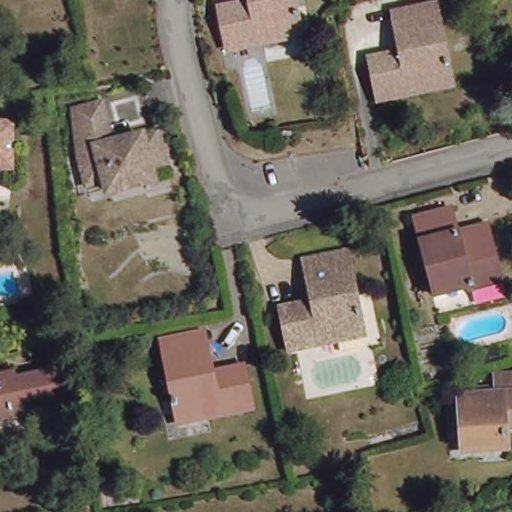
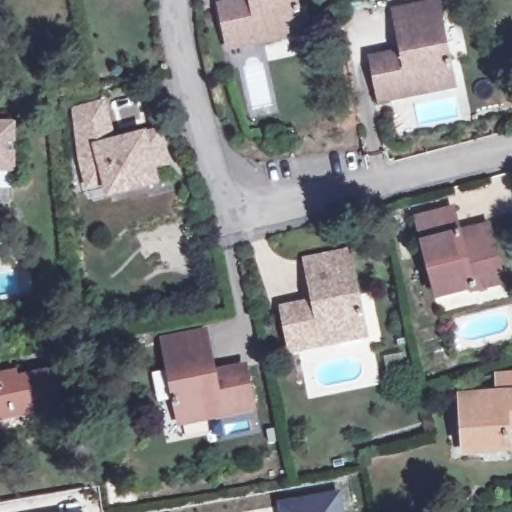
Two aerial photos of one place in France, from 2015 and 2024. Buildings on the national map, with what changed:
unchanged [(228,43),(220,1),(228,0),(294,0),(300,28),(228,43)]
unchanged [(410,0),(439,0),(440,7),(455,81),(383,96),(376,54),(406,48),(403,31),(400,16),(397,2),(410,0)]
unchanged [(82,186),(74,158),(70,108),(97,100),(109,140),(154,127),(165,164),(166,174),(151,179),(105,193),(86,199),(82,186)]
unchanged [(12,124),(11,172),(0,172),(0,124),(12,124)]
unchanged [(440,300),(420,222),(455,213),(463,243),(476,240),(475,234),(491,230),(505,286),(474,295),(473,292),(440,300)]
unchanged [(303,256),(345,248),(347,260),(361,335),(290,349),(282,309),(312,302),(310,286),(306,268),(303,256)]
unchanged [(245,408),(175,422),(160,348),(157,337),(200,328),(202,340),(205,356),(209,373),(237,368),(245,408)]
unchanged [(91,352),(105,349),(106,360),(93,362),(91,352)]
unchanged [(450,384),(493,384),(491,368),(512,365),(512,451),(447,458),(450,384)]
unchanged [(0,424),(0,382),(8,380),(10,389),(21,387),(21,384),(65,375),(72,409),(27,418),(15,420),(0,424)]
new [(338,493),(342,512),(282,512),(281,504),(338,493)]

